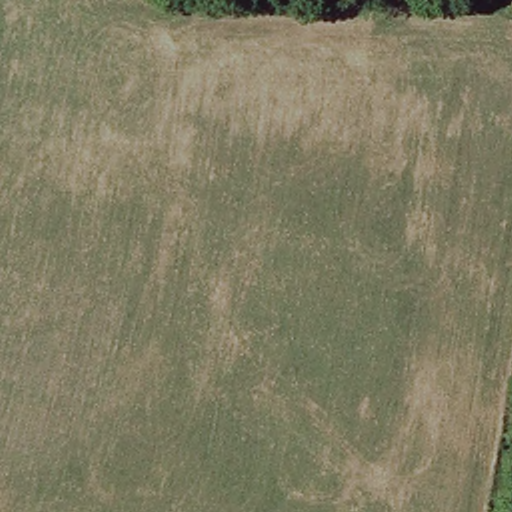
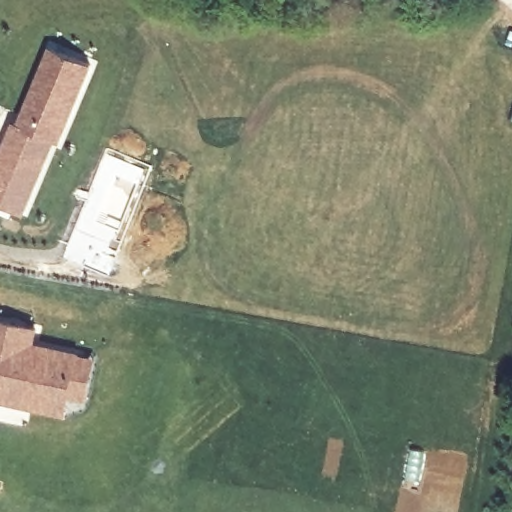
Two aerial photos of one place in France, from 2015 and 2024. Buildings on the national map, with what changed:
new [(50,43),(94,63),(61,146),(57,144),(15,121),(50,43)]
new [(15,121),(57,144),(27,215),(0,207),(0,147),(12,120),(15,121)]
new [(35,341),(97,357),(86,402),(72,398),(67,415),(0,402),(0,320),(38,328),(35,341)]

